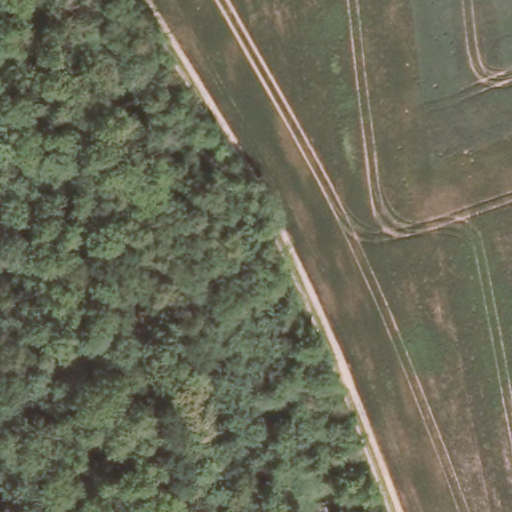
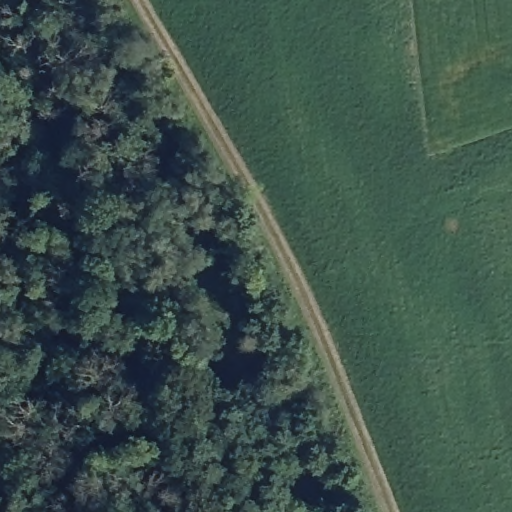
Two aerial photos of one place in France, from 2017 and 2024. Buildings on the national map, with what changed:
unchanged [(326,505),(315,508),(310,492),(322,489),(326,505)]

